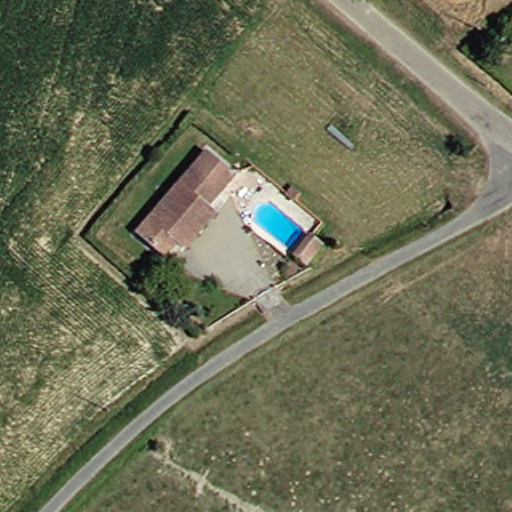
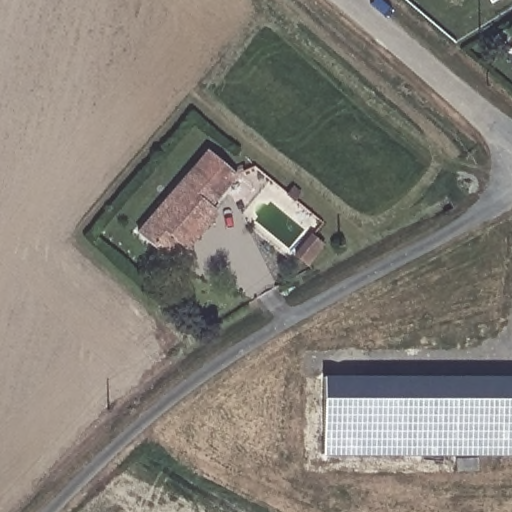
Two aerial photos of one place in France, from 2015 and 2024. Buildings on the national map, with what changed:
unchanged [(183,238),(169,254),(142,229),(213,148),(232,166),(243,175),(226,194),(223,193),(215,202),(225,210),(192,247),(183,238)]
new [(512,374),(512,453),(329,453),(328,374),(512,374)]

